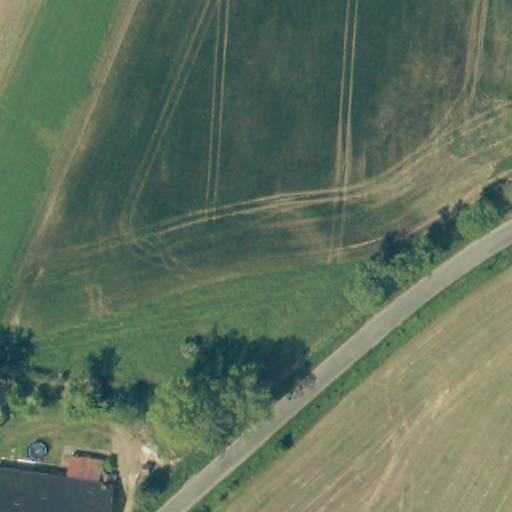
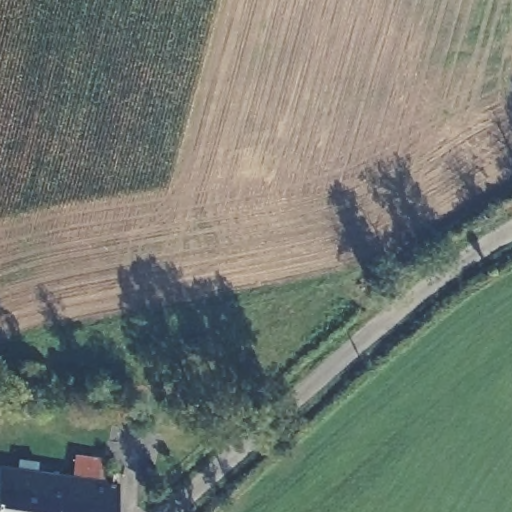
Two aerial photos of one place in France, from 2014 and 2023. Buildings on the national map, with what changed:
unchanged [(4,397),(0,397),(0,381),(7,382),(4,397)]
unchanged [(108,481),(50,473),(53,452),(111,460),(110,473),(108,481)]
unchanged [(108,481),(110,473),(122,474),(118,512),(0,512),(0,481),(2,466),(50,473),(108,481)]

